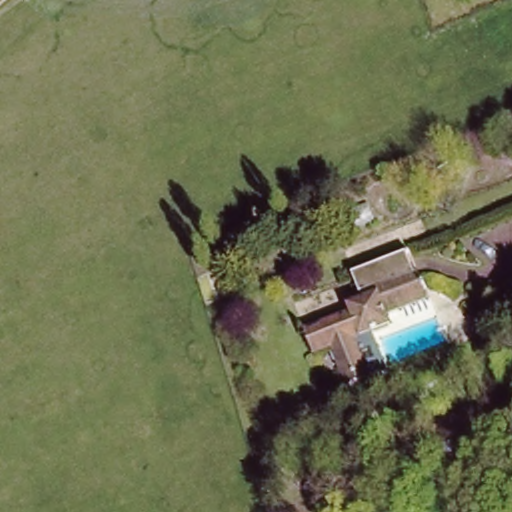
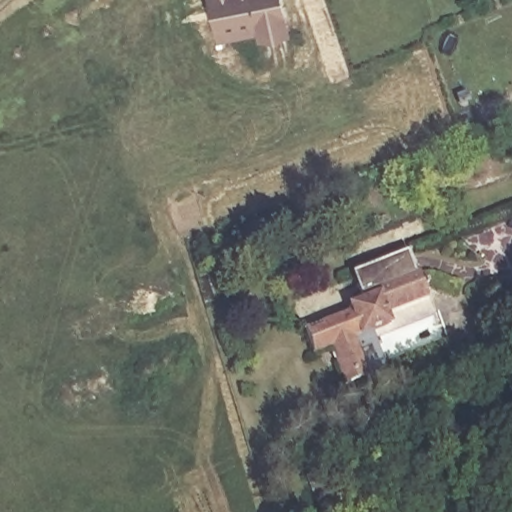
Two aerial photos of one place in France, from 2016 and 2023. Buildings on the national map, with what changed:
new [(284,0),(290,29),(257,39),(255,31),(219,41),(211,0),(284,0)]
unchanged [(376,372),(350,382),(337,347),(320,353),(310,327),(357,310),(355,304),(369,299),(359,273),(417,251),(434,295),(390,312),(395,323),(377,330),(391,366),(376,372)]
unchanged [(345,468),(352,495),(370,481),(379,492),(354,512),(345,501),(339,506),(327,467),(345,468)]

